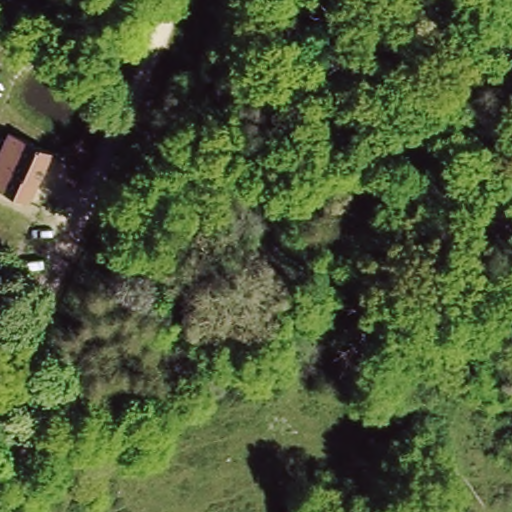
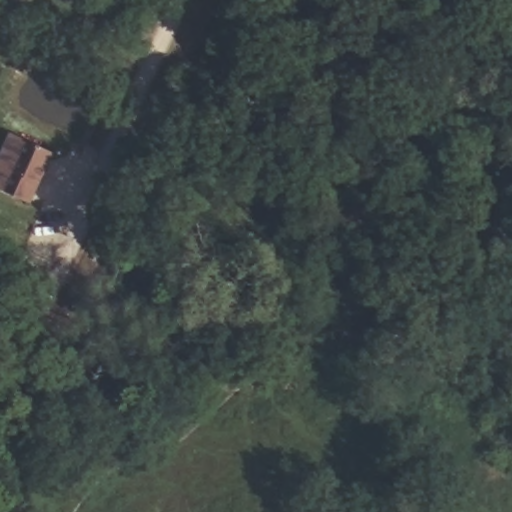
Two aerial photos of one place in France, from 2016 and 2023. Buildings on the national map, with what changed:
unchanged [(8,129),(38,142),(42,133),(60,140),(35,196),(0,181),(0,149),(8,129)]
unchanged [(309,169),(368,195),(350,233),(291,208),(309,169)]
unchanged [(110,249),(156,268),(140,308),(93,290),(110,249)]
unchanged [(270,274),(290,284),(262,326),(241,315),(270,274)]

